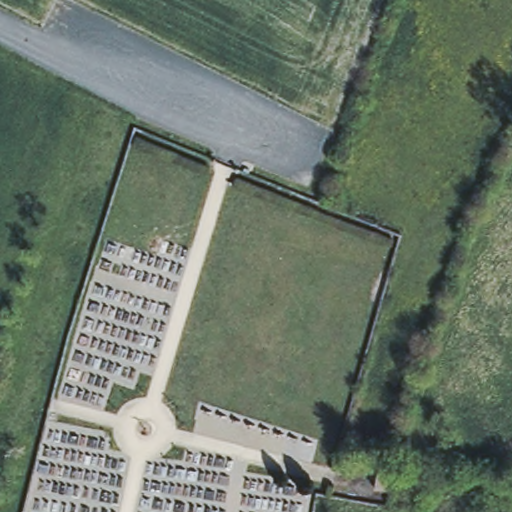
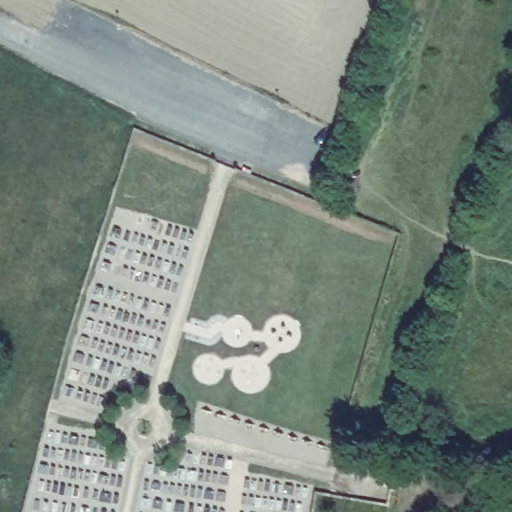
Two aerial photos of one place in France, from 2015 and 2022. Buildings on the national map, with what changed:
unchanged [(387,469),(383,489),(372,487),(375,467),(387,469)]

